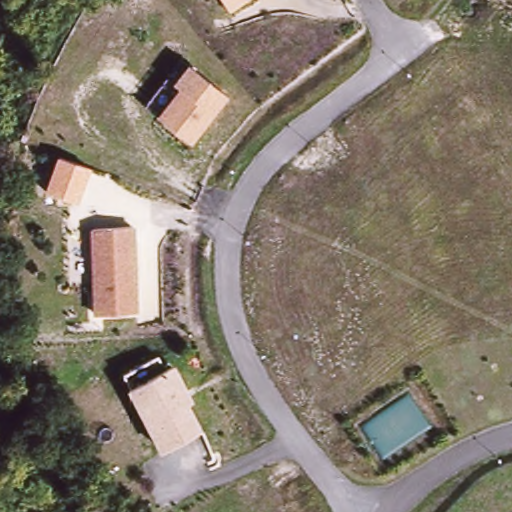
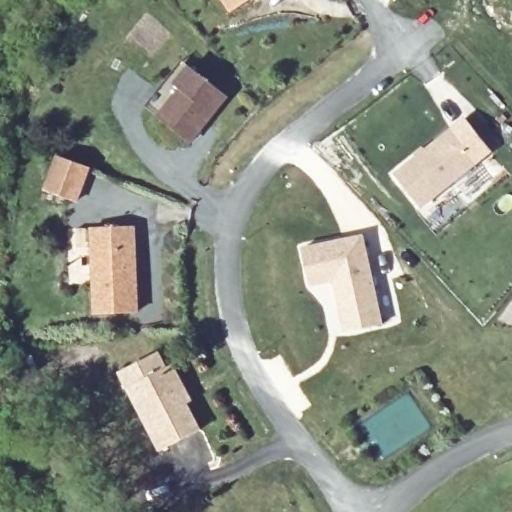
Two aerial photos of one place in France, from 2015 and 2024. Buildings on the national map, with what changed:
unchanged [(231,11),(223,0),(247,0),(231,11)]
unchanged [(147,104),(183,61),(229,97),(192,144),(147,104)]
new [(395,172),(451,129),(479,164),(423,207),(395,172)]
unchanged [(91,167),(79,201),(44,188),(55,156),(91,167)]
unchanged [(135,226),(139,311),(94,312),(91,228),(135,226)]
new [(364,232),(384,323),(340,332),(331,282),(308,287),(300,246),(364,232)]
unchanged [(160,352),(168,367),(128,387),(120,372),(160,352)]
unchanged [(204,431),(159,452),(125,388),(172,366),(204,431)]

